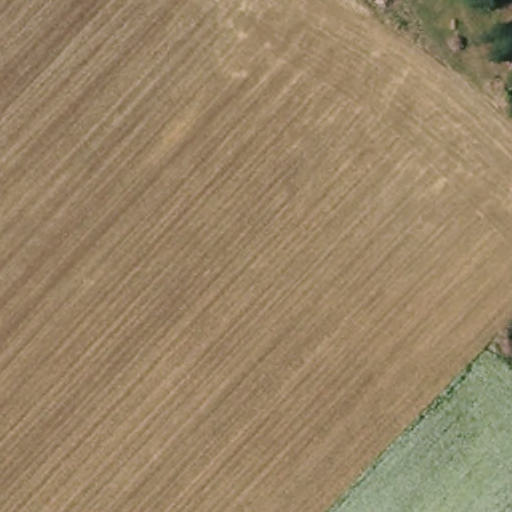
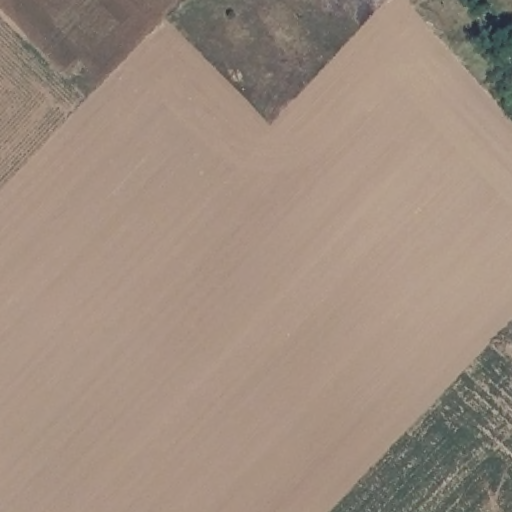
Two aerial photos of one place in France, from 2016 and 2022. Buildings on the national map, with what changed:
unchanged [(505,98),(508,95),(512,99),(512,106),(505,98)]

